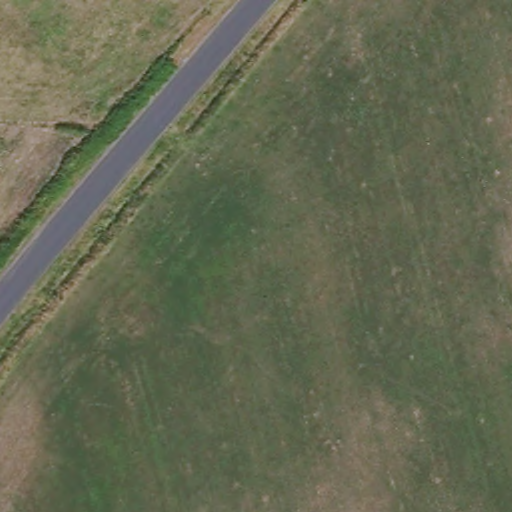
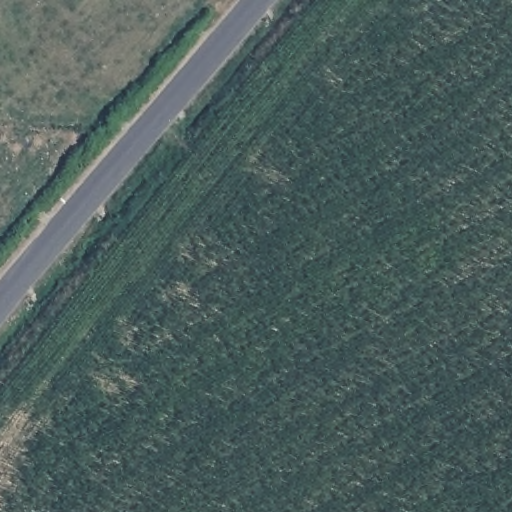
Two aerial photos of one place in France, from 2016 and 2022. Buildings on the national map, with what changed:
[]

